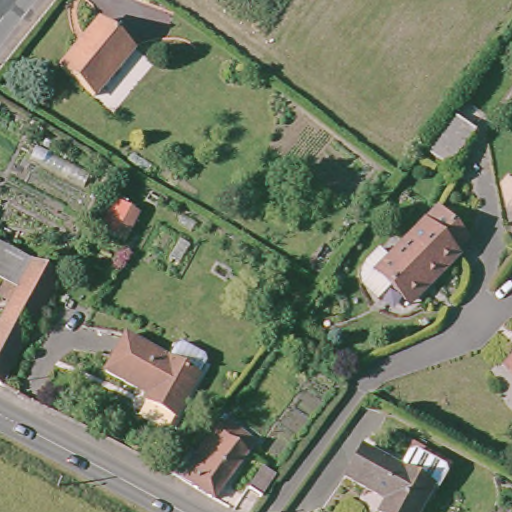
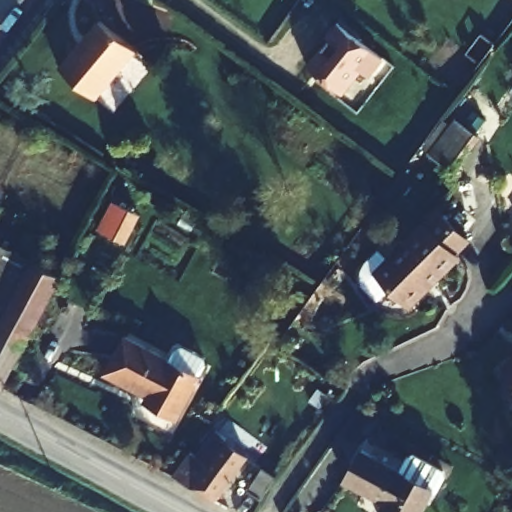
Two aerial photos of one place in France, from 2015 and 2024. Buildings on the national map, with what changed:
new [(370,79),(360,71),(342,94),(305,67),(337,24),(385,58),(370,79)]
unchanged [(64,66),(102,26),(130,53),(92,91),(64,66)]
unchanged [(455,161),(434,146),(461,111),(482,129),(455,161)]
unchanged [(117,223),(131,198),(145,207),(132,230),(117,223)]
unchanged [(439,276),(417,298),(404,285),(389,298),(372,282),(376,262),(413,226),(422,235),(450,208),(479,237),(465,249),(471,256),(443,280),(439,276)]
unchanged [(47,297),(30,342),(19,371),(10,393),(0,388),(0,323),(15,286),(0,279),(0,250),(55,278),(47,297)]
unchanged [(162,359),(170,344),(202,359),(195,373),(173,421),(144,408),(147,401),(104,381),(122,341),(162,359)]
unchanged [(502,365),(512,355),(512,375),(502,365)]
unchanged [(186,479),(202,455),(199,453),(221,422),(217,419),(220,414),(256,438),(212,499),(186,479)]
unchanged [(387,498),(347,478),(363,449),(434,484),(418,512),(380,512),(387,498)]
unchanged [(252,481),(265,463),(280,472),(266,491),(252,481)]

